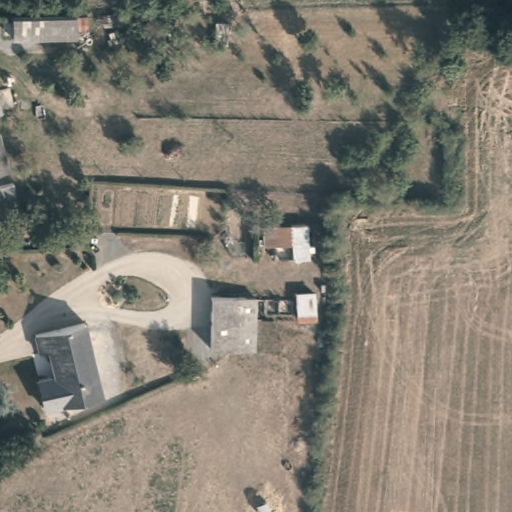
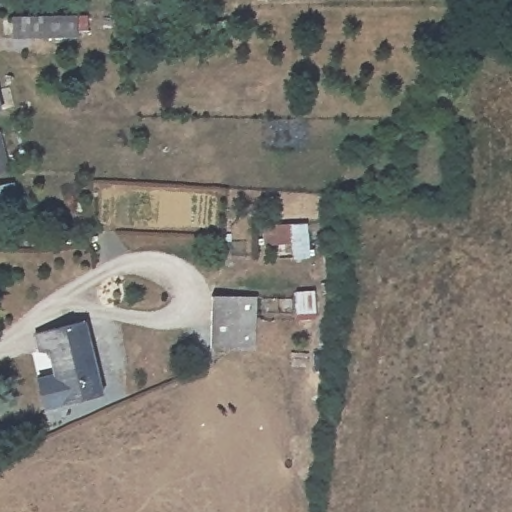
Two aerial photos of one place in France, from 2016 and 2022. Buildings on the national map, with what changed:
unchanged [(78,15),(78,36),(16,39),(13,16),(78,15)]
unchanged [(0,172),(0,135),(10,170),(0,172)]
unchanged [(256,347),(212,344),(215,299),(258,302),(256,347)]
unchanged [(37,329),(86,317),(104,389),(48,403),(41,374),(57,370),(50,344),(41,347),(37,329)]

